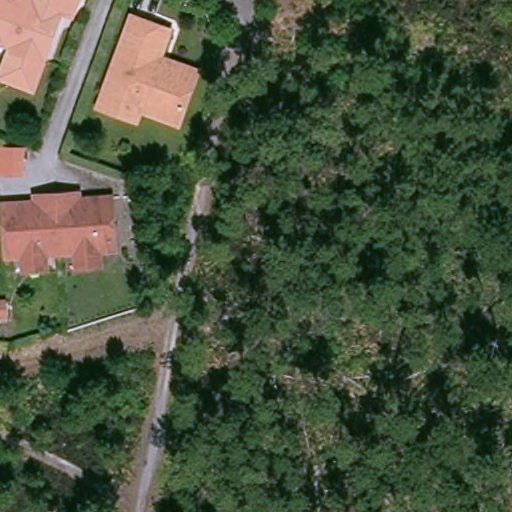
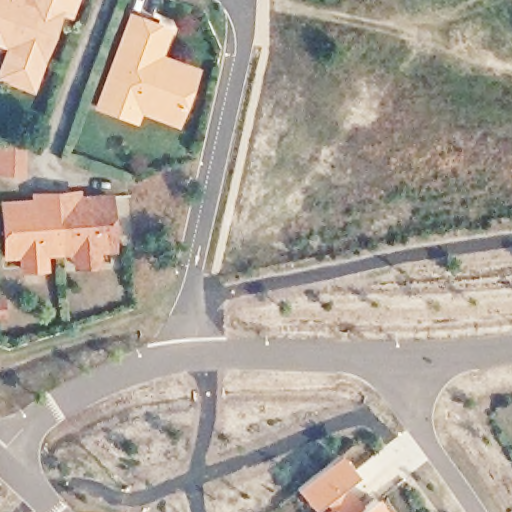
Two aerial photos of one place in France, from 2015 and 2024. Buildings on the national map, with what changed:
unchanged [(14,51),(0,47),(0,0),(22,0),(22,1),(37,6),(38,0),(65,0),(60,14),(65,16),(59,31),(44,71),(36,94),(12,85),(3,81),(9,64),(14,51)]
unchanged [(134,115),(131,125),(92,111),(126,20),(163,34),(152,65),(160,67),(165,65),(182,71),(191,74),(188,84),(177,114),(172,128),(134,115)]
unchanged [(26,146),(25,174),(0,172),(0,145),(26,146)]
unchanged [(23,261),(5,262),(2,209),(34,207),(34,201),(77,198),(77,204),(110,202),(113,255),(96,256),(97,271),(77,272),(76,257),(59,258),(43,260),(44,274),(24,276),(23,261)]
new [(356,475),(348,482),(366,504),(375,497),(386,512),(326,512),(320,503),(312,510),(295,488),(338,454),(356,475)]

